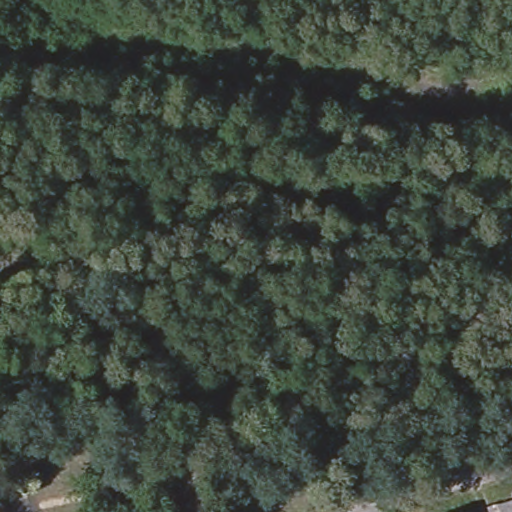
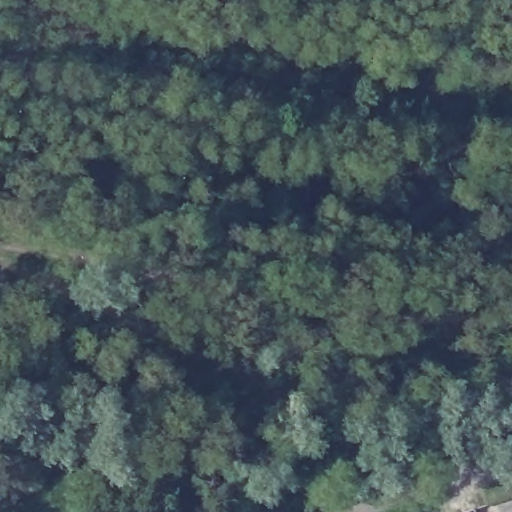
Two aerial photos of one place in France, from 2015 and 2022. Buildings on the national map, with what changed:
unchanged [(512,495),(512,512),(504,512),(500,500),(512,495)]

